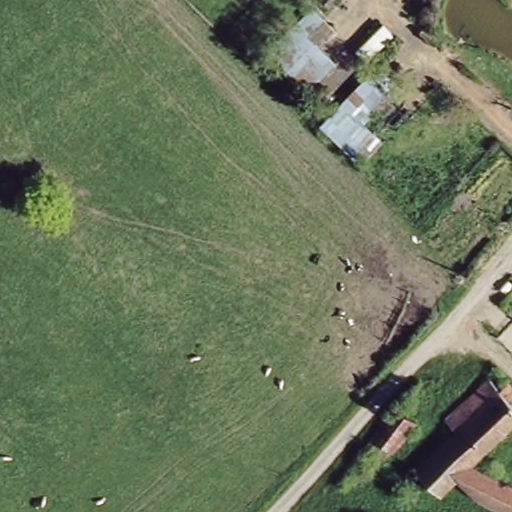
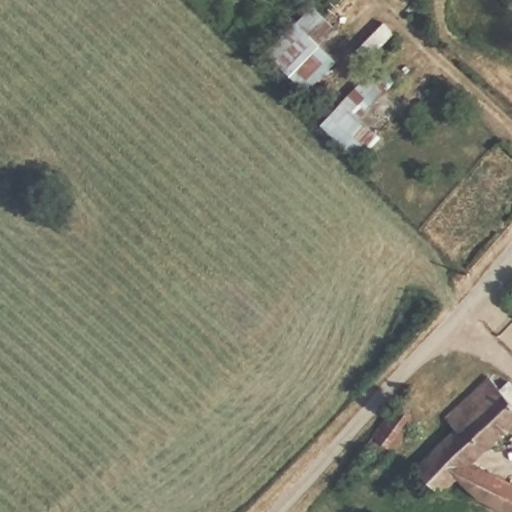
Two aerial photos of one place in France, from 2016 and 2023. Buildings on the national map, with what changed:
unchanged [(263,53),(313,2),(340,26),(321,44),(339,60),(305,93),(263,53)]
unchanged [(372,70),(388,90),(363,117),(378,134),(352,159),(320,120),(372,70)]
unchanged [(438,418),(477,377),(490,389),(497,381),(512,395),(512,409),(461,463),(512,483),(512,512),(501,512),(474,501),(448,477),(432,494),(408,471),(448,428),(438,418)]
unchanged [(391,407),(412,419),(391,454),(366,438),(391,407)]

